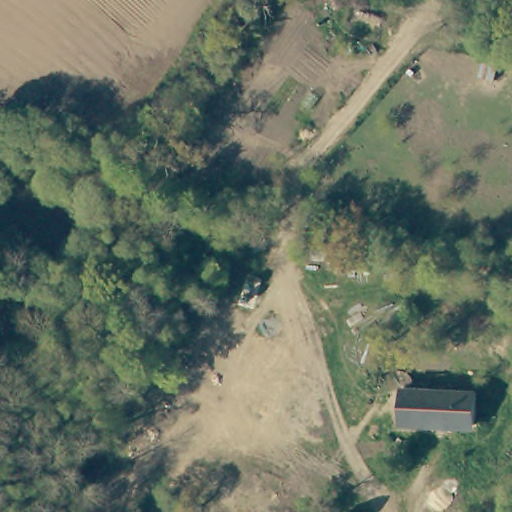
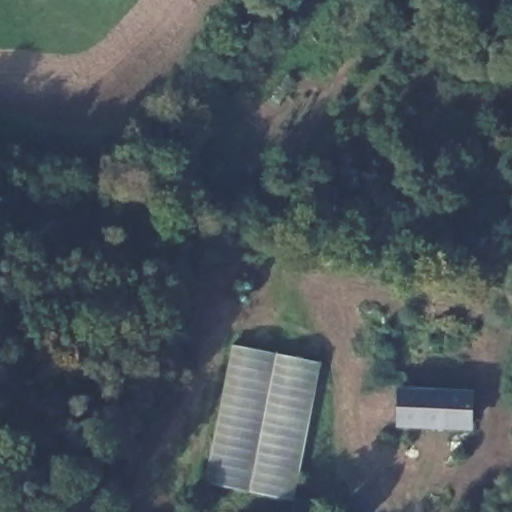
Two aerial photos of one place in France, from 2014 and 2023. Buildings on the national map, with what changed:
new [(238,347),(323,362),(294,501),(207,483),(238,347)]
unchanged [(442,428),(397,426),(399,387),(471,388),(470,420),(469,430),(442,428)]

